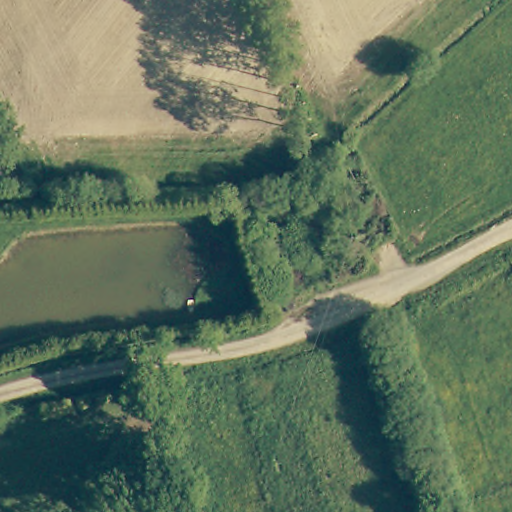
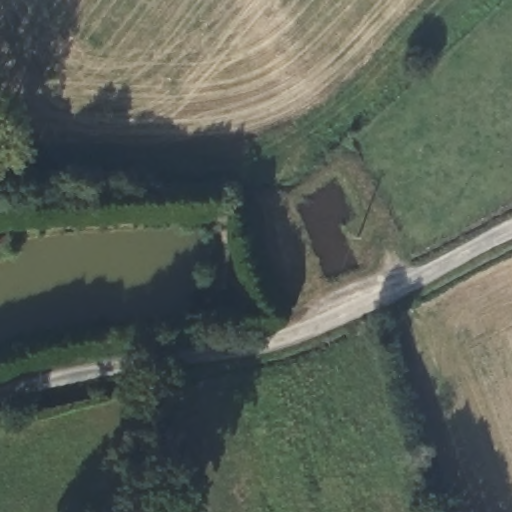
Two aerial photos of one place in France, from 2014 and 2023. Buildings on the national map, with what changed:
unchanged [(294,293),(315,284),(320,297),(307,302),(298,306),(294,293)]

